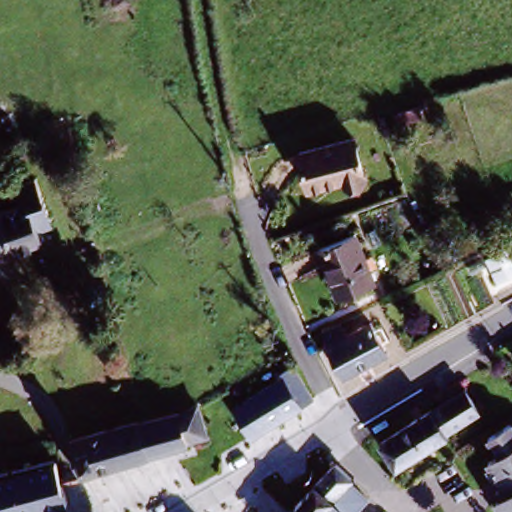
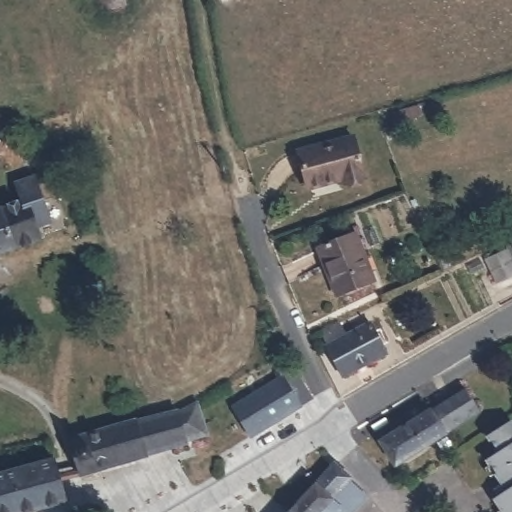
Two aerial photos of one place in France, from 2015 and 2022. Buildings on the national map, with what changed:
unchanged [(354,135),(368,190),(341,194),(339,184),(305,190),(293,150),(354,135)]
unchanged [(4,186),(35,175),(45,202),(28,208),(40,242),(0,256),(0,210),(13,205),(4,186)]
unchanged [(356,237),(374,285),(335,298),(317,251),(356,237)]
unchanged [(500,274),(490,253),(512,243),(512,269),(500,274)]
unchanged [(384,358),(338,377),(324,345),(327,344),(321,330),(340,322),(346,336),(371,326),(384,358)]
unchanged [(269,336),(273,347),(266,350),(261,338),(269,336)]
unchanged [(234,405),(243,400),(285,379),(282,372),(293,366),(312,403),(308,405),(264,428),(259,430),(251,435),(234,405)]
unchanged [(426,413),(459,391),(475,415),(441,437),(426,413)]
unchanged [(71,430),(81,428),(124,418),(144,413),(148,413),(150,416),(166,411),(173,410),(175,413),(198,407),(199,415),(203,438),(203,443),(188,444),(178,445),(178,450),(158,451),(157,455),(153,456),(110,468),(81,476),(78,463),(71,430)]
unchanged [(426,413),(441,437),(396,465),(390,469),(375,446),(381,443),(426,413)]
unchanged [(499,512),(491,498),(496,495),(487,480),(476,463),(488,456),(477,438),(499,425),(510,442),(512,441),(512,512),(499,512)]
unchanged [(358,480),(355,482),(371,499),(358,512),(293,512),(341,463),(358,480)]
unchanged [(50,466),(54,478),(54,479),(62,503),(34,512),(0,512),(0,482),(49,466),(50,466)]

